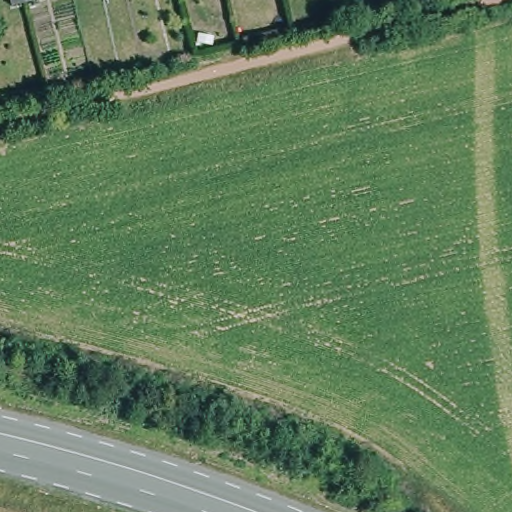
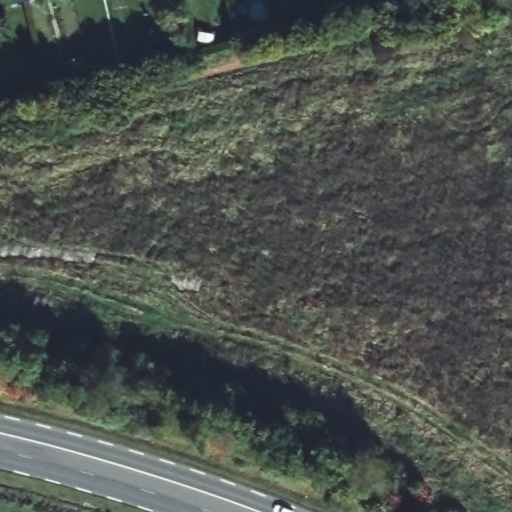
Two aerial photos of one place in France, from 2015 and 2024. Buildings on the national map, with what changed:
unchanged [(13,0),(31,0),(26,1),(14,4),(13,0)]

